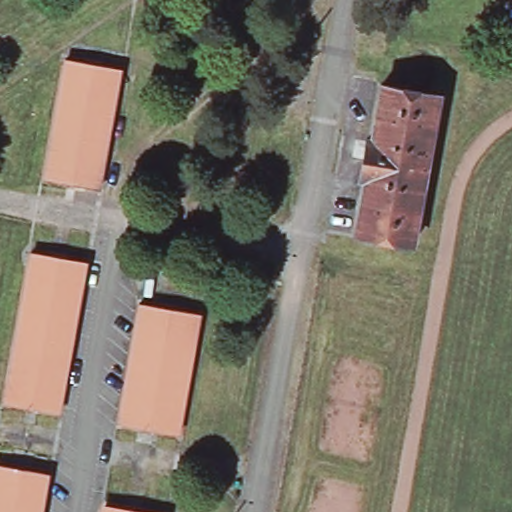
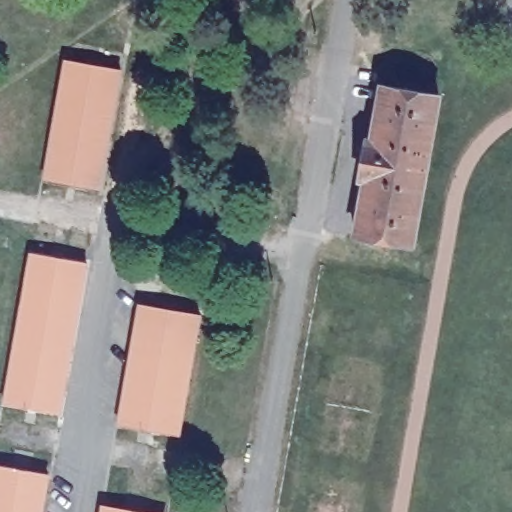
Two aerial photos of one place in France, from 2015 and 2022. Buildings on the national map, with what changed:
unchanged [(130,63),(105,200),(42,188),(65,52),(130,63)]
unchanged [(444,83),(412,253),(344,240),(373,73),(444,83)]
unchanged [(94,250),(63,421),(0,409),(0,406),(32,238),(94,250)]
unchanged [(137,301),(201,313),(180,434),(117,421),(137,301)]
unchanged [(46,512),(0,512),(0,468),(53,477),(46,512)]
unchanged [(95,512),(97,502),(148,512),(95,512)]

